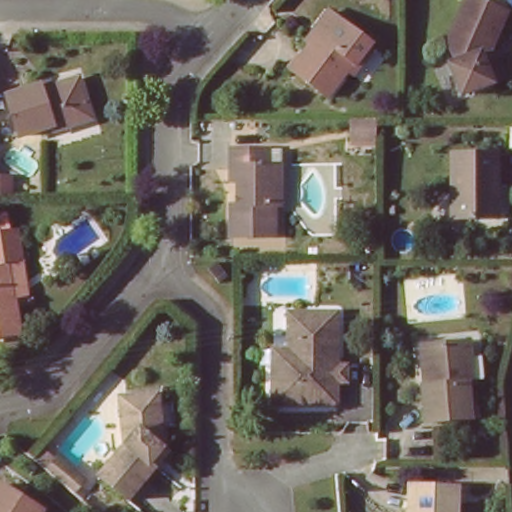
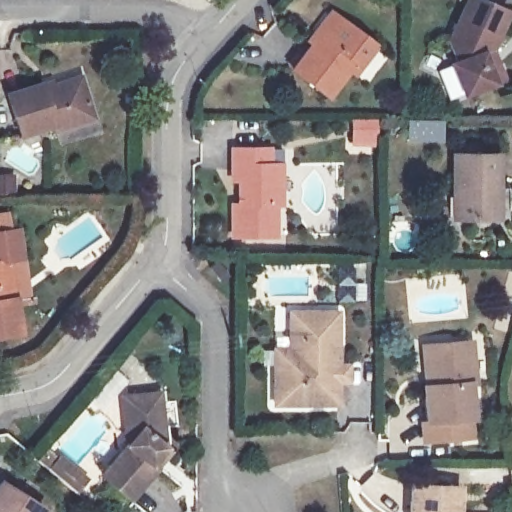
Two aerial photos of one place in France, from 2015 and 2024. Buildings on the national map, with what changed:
unchanged [(507,16),(496,52),(491,101),(443,100),(457,39),(467,4),(507,16)]
unchanged [(323,99),(293,68),(318,44),(311,37),(331,10),(343,19),(375,48),(323,99)]
unchanged [(85,104),(88,114),(71,121),(73,126),(51,134),(50,129),(18,141),(2,100),(40,86),(41,91),(79,77),(85,104)]
unchanged [(496,153),(495,220),(450,219),(451,155),(496,153)]
unchanged [(265,154),(265,167),(276,167),(276,209),(269,209),(269,239),(227,239),(226,209),(233,209),(233,188),(227,188),(227,156),(265,154)]
unchanged [(8,229),(17,228),(28,293),(15,294),(21,332),(0,336),(0,220),(8,220),(8,229)]
unchanged [(339,385),(338,411),(273,409),(275,349),(274,339),(293,340),(293,318),(341,317),(340,368),(348,369),(347,385),(339,385)]
unchanged [(467,343),(470,386),(465,386),(466,418),(420,421),(418,387),(425,387),(423,349),(467,343)]
unchanged [(157,388),(166,439),(166,444),(149,464),(158,467),(128,501),(95,475),(123,442),(118,396),(157,388)]
unchanged [(58,456),(87,480),(71,495),(44,471),(58,456)]
unchanged [(0,487),(38,512),(0,512),(0,487)]
unchanged [(456,491),(456,512),(406,512),(406,491),(456,491)]

